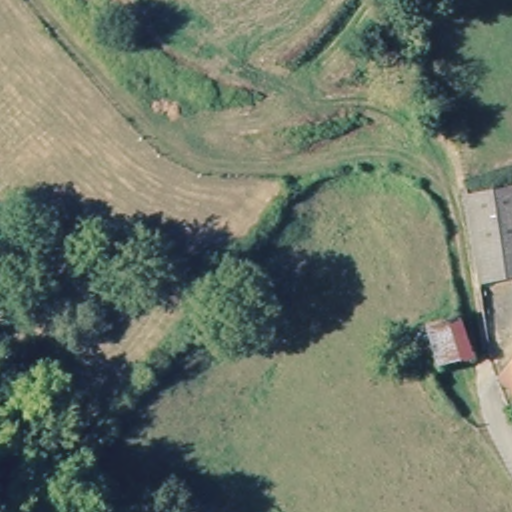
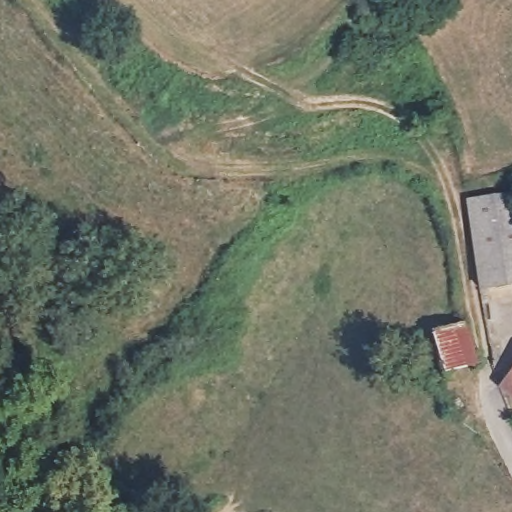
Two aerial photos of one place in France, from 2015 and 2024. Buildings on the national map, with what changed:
unchanged [(512,194),(512,288),(487,292),(468,201),(512,194)]
unchanged [(474,375),(444,382),(441,372),(436,373),(430,342),(465,334),(474,375)]
unchanged [(510,390),(512,388),(512,392),(510,390)]

